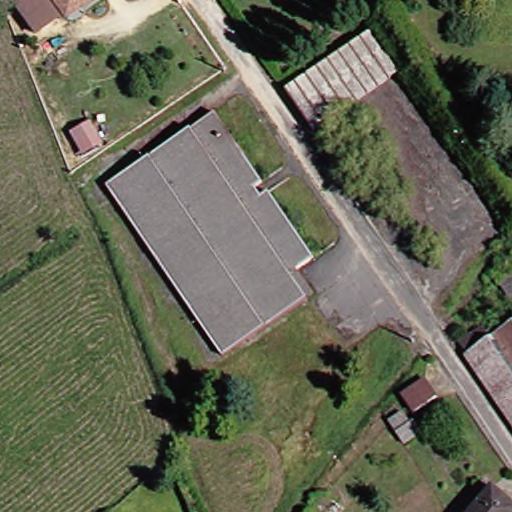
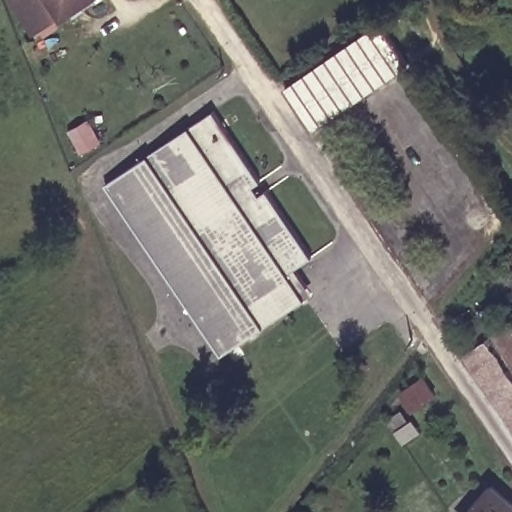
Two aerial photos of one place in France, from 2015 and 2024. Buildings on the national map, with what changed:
unchanged [(66,16),(41,33),(19,0),(98,0),(70,21),(66,16)]
unchanged [(287,92),(380,28),(407,67),(313,131),(287,92)]
unchanged [(308,302),(223,357),(111,184),(218,114),(264,185),(257,191),(261,198),(270,193),(314,262),(298,273),(313,298),(308,302)]
unchanged [(99,144),(83,152),(71,130),(88,122),(99,144)]
unchanged [(507,267),(512,275),(512,304),(493,276),(507,267)]
unchanged [(487,325),(498,338),(512,328),(512,419),(459,342),(487,325)]
unchanged [(435,396),(413,411),(401,394),(423,380),(435,396)]
unchanged [(492,486),(512,505),(512,512),(471,512),(492,486)]

